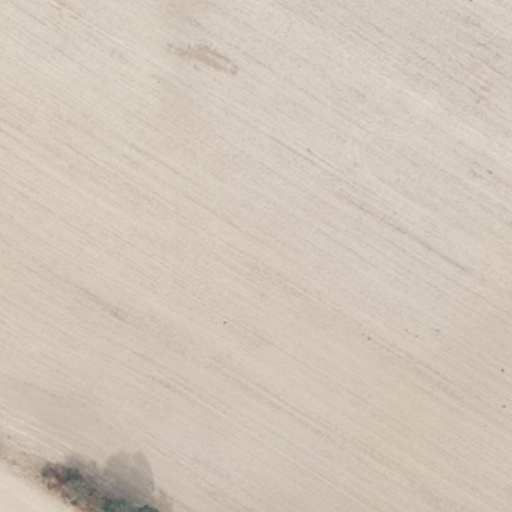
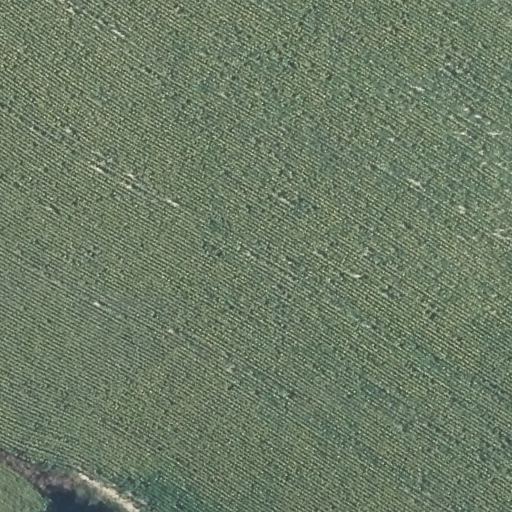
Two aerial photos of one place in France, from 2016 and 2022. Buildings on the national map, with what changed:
[]

